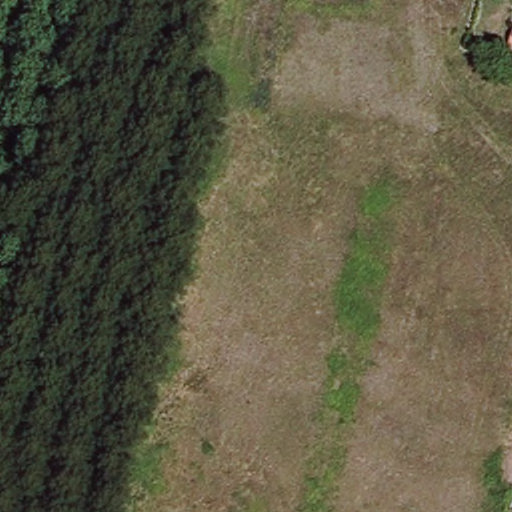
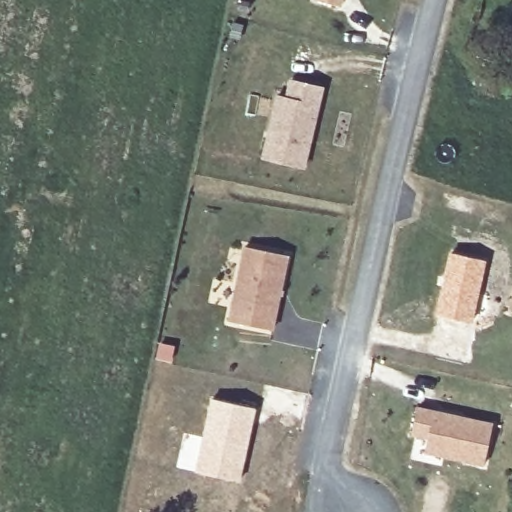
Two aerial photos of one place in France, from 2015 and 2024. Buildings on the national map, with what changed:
new [(342,5),(313,0),(343,0),(342,5)]
new [(285,98),(290,79),(323,88),(304,169),(261,158),(275,96),(285,98)]
new [(243,246),(288,257),(273,329),(228,321),(243,246)]
new [(449,251),(487,259),(472,322),(434,313),(449,251)]
new [(185,433),(201,436),(210,397),(257,407),(240,481),(177,466),(185,433)]
new [(428,440),(412,436),(418,408),(491,423),(483,466),(425,454),(428,440)]

